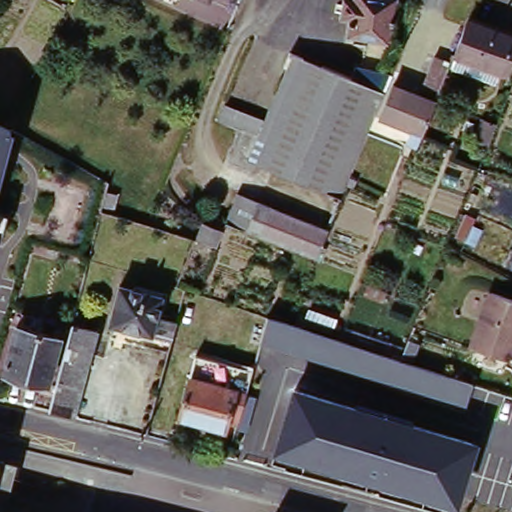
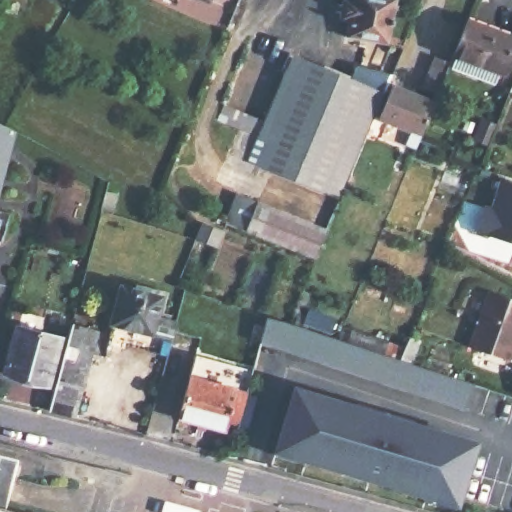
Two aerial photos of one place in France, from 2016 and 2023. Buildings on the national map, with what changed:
unchanged [(214,8),(195,0),(217,0),(214,8)]
unchanged [(404,5),(397,45),(360,39),(362,20),(350,19),(352,2),(363,4),(363,0),(378,0),(404,5)]
unchanged [(512,34),(512,74),(507,72),(503,83),(461,67),(466,55),(461,54),(475,20),(512,34)]
unchanged [(340,197),(247,159),(257,132),(237,124),(219,116),(225,100),(244,109),(264,117),(291,52),(350,76),(355,65),(390,74),(356,160),(340,197)]
unchanged [(432,83),(445,52),(459,59),(447,89),(432,83)]
unchanged [(406,140),(410,129),(378,115),(392,83),(432,100),(415,144),(406,140)]
unchanged [(0,122),(11,127),(0,177),(0,122)]
unchanged [(487,147),(479,144),(486,124),(496,126),(487,147)]
unchanged [(115,195),(110,216),(99,213),(104,191),(115,195)]
unchanged [(229,225),(240,195),(332,232),(320,263),(229,225)]
unchanged [(0,209),(5,210),(0,232),(0,209)]
unchanged [(225,234),(220,247),(200,239),(205,225),(225,234)]
unchanged [(172,345),(114,330),(119,309),(115,308),(124,277),(166,288),(160,308),(180,313),(172,345)]
unchanged [(512,306),(512,363),(477,351),(495,300),(512,306)]
unchanged [(333,317),(330,329),(303,319),(307,307),(333,317)]
unchanged [(463,410),(257,343),(265,315),(343,339),(347,328),(405,346),(408,338),(421,343),(413,363),(473,382),(463,410)]
unchanged [(48,418),(70,331),(96,339),(74,425),(48,418)]
unchanged [(15,332),(58,344),(45,394),(4,382),(1,391),(0,391),(0,365),(6,366),(15,332)]
unchanged [(230,423),(226,435),(182,423),(193,381),(225,389),(230,366),(256,373),(241,426),(230,423)]
unchanged [(459,507),(271,453),(293,384),(477,441),(459,507)]
unchanged [(0,512),(0,461),(15,465),(3,512),(0,512)]

